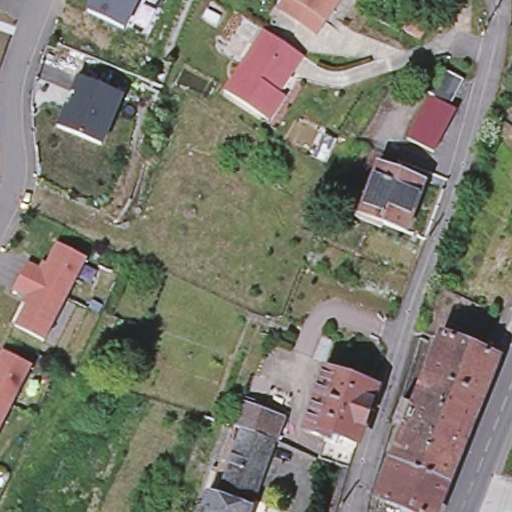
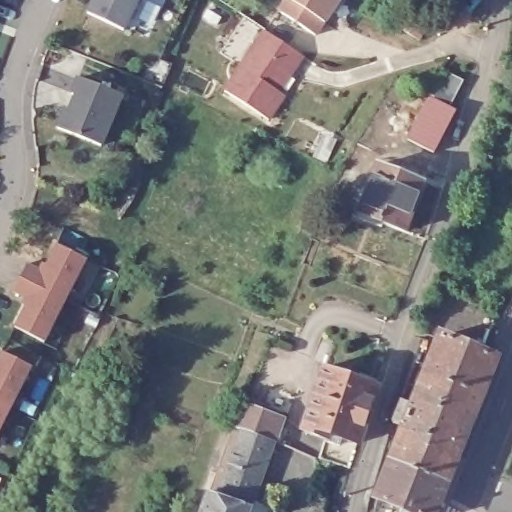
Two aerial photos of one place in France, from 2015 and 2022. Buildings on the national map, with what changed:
unchanged [(89,14),(96,0),(140,0),(125,31),(89,14)]
unchanged [(346,0),(321,36),(280,6),(284,0),(346,0)]
unchanged [(416,22),(430,33),(423,44),(408,33),(416,22)]
unchanged [(280,92),(266,113),(222,85),(261,24),(300,49),(287,69),(275,89),(280,92)]
unchanged [(411,120),(419,106),(426,92),(422,90),(430,75),(436,65),(460,76),(453,88),(445,101),(455,106),(447,120),(439,134),(431,149),(403,133),(411,120)]
unchanged [(123,97),(102,148),(58,130),(66,110),(71,111),(77,97),(72,95),(80,79),(123,97)]
unchanged [(375,159),(420,177),(400,227),(355,210),(375,159)]
unchanged [(40,272),(44,265),(47,267),(58,246),(88,261),(66,303),(21,280),(28,265),(40,272)]
unchanged [(46,344),(16,329),(26,308),(23,306),(26,300),(15,293),(21,280),(66,303),(46,344)]
unchanged [(373,495),(436,333),(494,355),(431,512),(414,512),(373,495)]
unchanged [(33,368),(12,410),(0,404),(0,361),(4,353),(33,368)]
unchanged [(320,456),(328,436),(305,428),(326,365),(378,381),(359,440),(351,465),(341,462),(326,458),(320,456)]
unchanged [(205,492),(231,423),(241,396),(260,403),(258,406),(281,416),(272,438),(247,507),(205,492)]
unchanged [(0,434),(0,404),(12,410),(0,434)]
unchanged [(205,492),(247,507),(246,512),(198,512),(205,492)]

